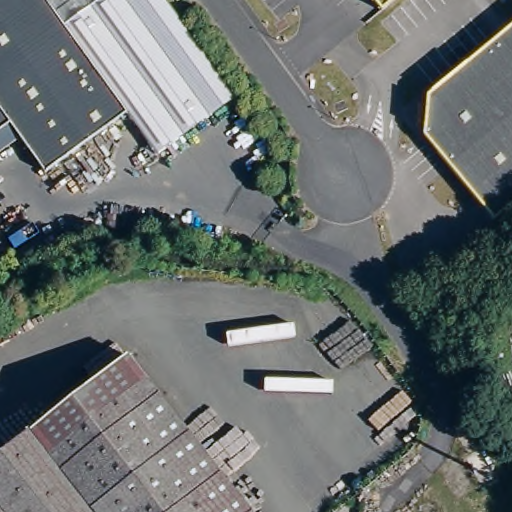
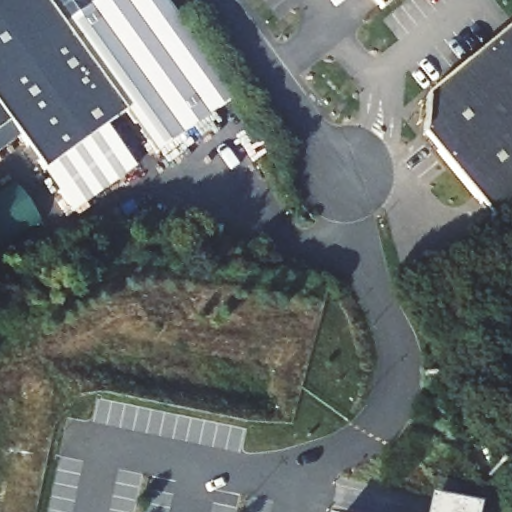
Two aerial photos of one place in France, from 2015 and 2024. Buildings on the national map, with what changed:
unchanged [(105,125),(46,168),(20,132),(0,147),(0,0),(96,0),(84,9),(65,23),(127,107),(105,125)]
unchanged [(127,107),(65,23),(84,9),(96,0),(167,0),(237,94),(158,149),(127,107)]
unchanged [(377,0),(394,0),(384,9),(377,0)]
unchanged [(425,132),(429,94),(512,25),(512,205),(496,218),(425,132)]
new [(105,125),(132,164),(71,210),(46,168),(105,125)]
new [(11,181),(41,221),(0,251),(0,191),(11,181)]
demolished [(62,400),(51,385),(69,370),(81,386),(122,353),(246,512),(0,512),(0,449),(62,400)]
new [(481,502),(479,512),(429,512),(433,490),(481,502)]

